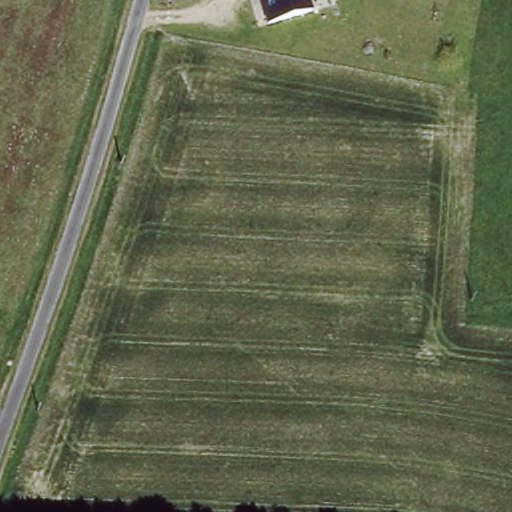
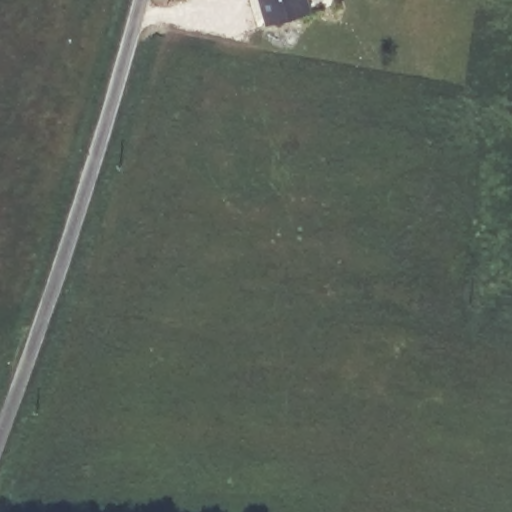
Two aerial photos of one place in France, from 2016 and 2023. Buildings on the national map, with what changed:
unchanged [(306,12),(260,25),(254,0),(302,0),(306,12)]

